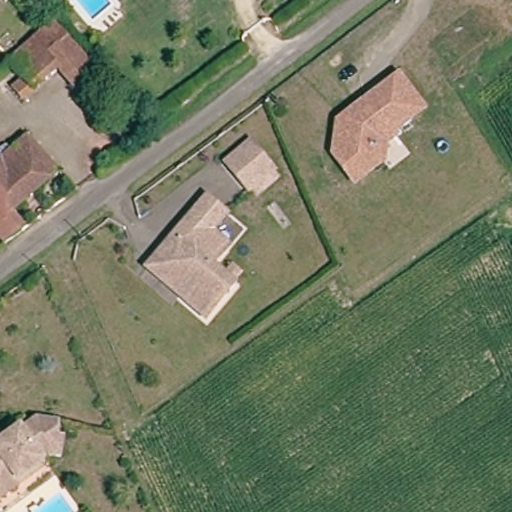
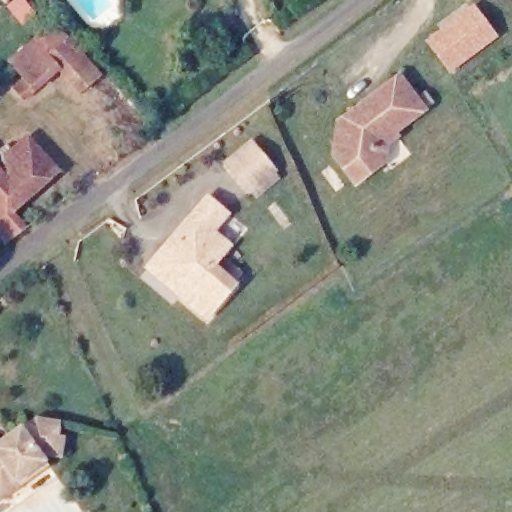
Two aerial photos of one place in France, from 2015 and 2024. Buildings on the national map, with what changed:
unchanged [(6,3),(3,0),(10,0),(6,3)]
new [(424,42),(475,4),(500,38),(450,75),(424,42)]
unchanged [(17,88),(30,78),(15,61),(57,23),(105,77),(85,94),(64,71),(40,91),(29,101),(17,88)]
unchanged [(383,149),(381,167),(352,189),(331,161),(343,151),(343,146),(335,134),(335,129),(355,113),(368,103),(395,82),(420,114),(391,137),(394,141),(383,149)]
unchanged [(62,172),(17,214),(30,227),(10,242),(0,231),(0,166),(7,160),(33,138),(62,172)]
unchanged [(262,192),(257,186),(255,189),(230,160),(255,140),(279,168),(276,170),(281,176),(262,192)]
unchanged [(1,153),(7,160),(0,166),(0,154),(1,153)]
unchanged [(212,199),(231,216),(217,232),(233,246),(235,247),(230,253),(217,267),(240,287),(212,319),(186,297),(153,269),(164,256),(212,199)]
unchanged [(19,428),(20,429),(35,418),(59,422),(56,435),(69,439),(65,459),(50,457),(46,459),(50,463),(52,467),(0,506),(0,442),(19,428)]

